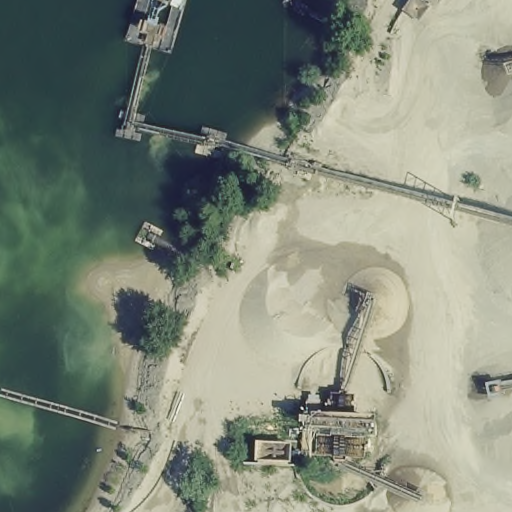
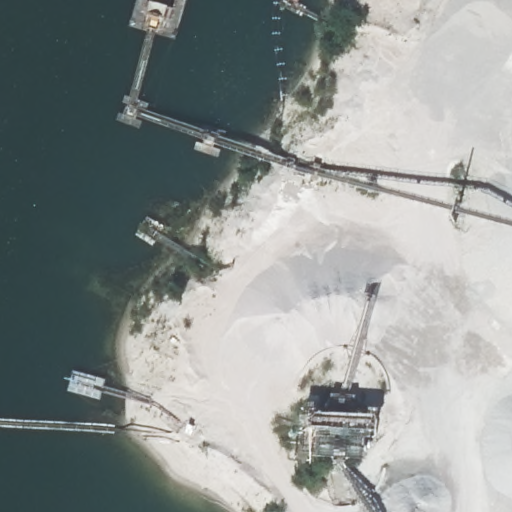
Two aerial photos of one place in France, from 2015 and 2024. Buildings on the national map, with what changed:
unchanged [(254,449),(298,451),(296,470),(256,469),(254,449)]

